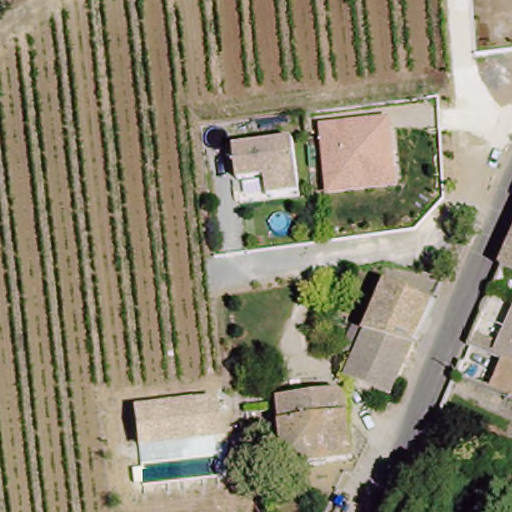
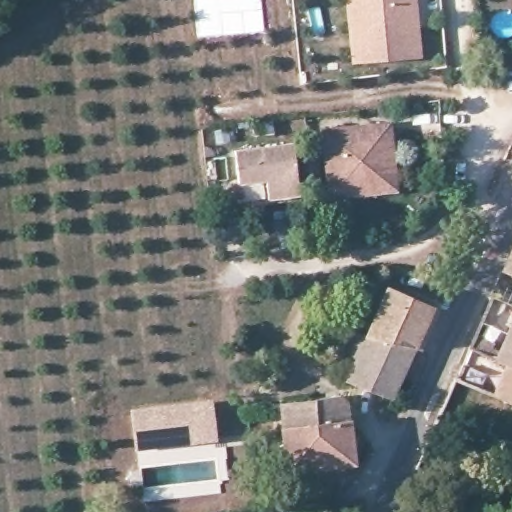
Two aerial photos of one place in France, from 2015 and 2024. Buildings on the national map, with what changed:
new [(418,0),(423,58),(352,65),(345,0),(418,0)]
unchanged [(322,129),(393,121),(399,190),(328,198),(322,129)]
unchanged [(293,142),(300,198),(240,204),(234,148),(293,142)]
unchanged [(512,245),(512,410),(450,384),(480,316),(512,245)]
unchanged [(373,336),(356,329),(370,332),(392,285),(435,304),(415,347),(373,336)]
unchanged [(392,398),(348,378),(360,355),(346,349),(356,329),(373,336),(415,347),(392,398)]
unchanged [(280,407),(271,409),(269,399),(280,397),(281,401),(341,394),(348,402),(355,462),(288,469),(280,407)]
unchanged [(130,408),(214,398),(219,439),(135,449),(130,408)]

